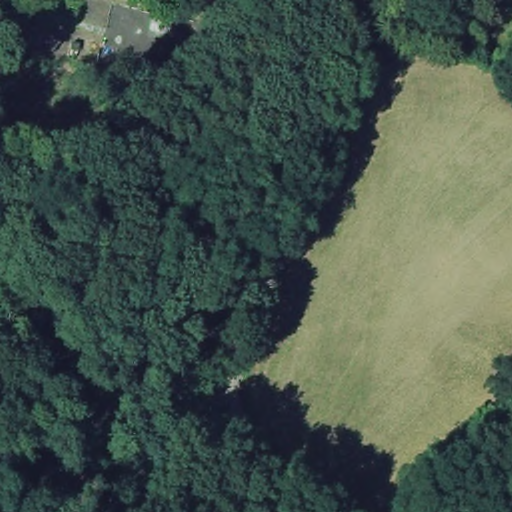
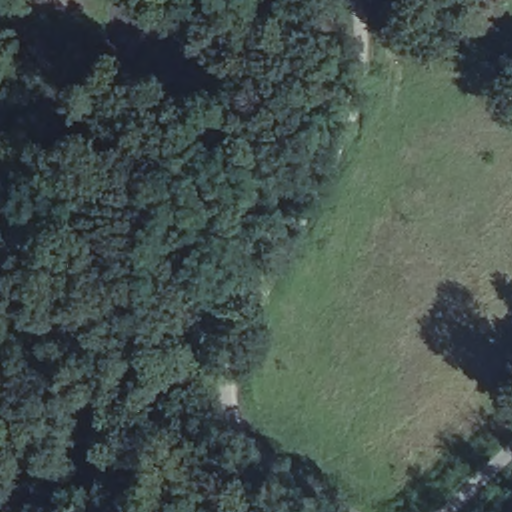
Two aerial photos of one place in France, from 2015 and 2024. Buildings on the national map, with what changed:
unchanged [(8,8),(7,11),(0,40),(0,6),(8,8)]

